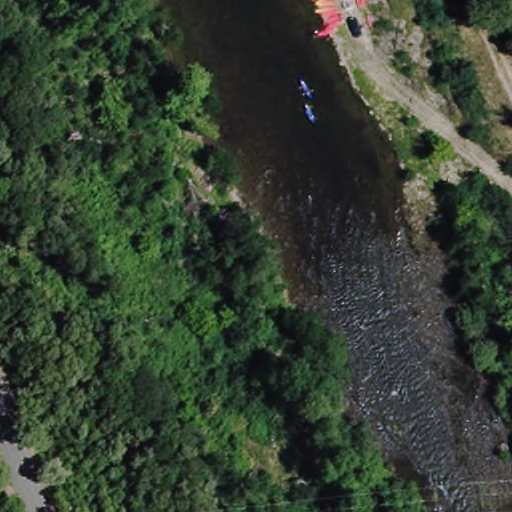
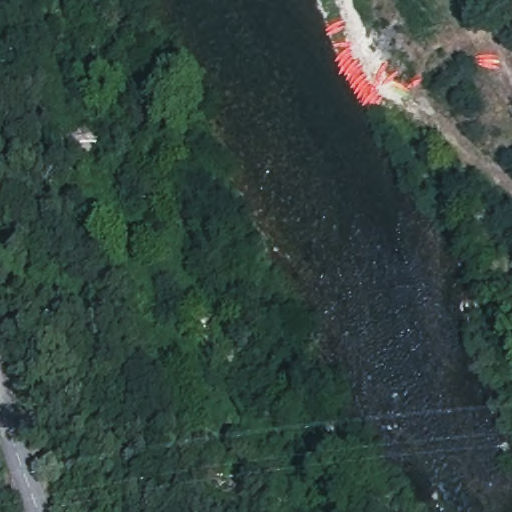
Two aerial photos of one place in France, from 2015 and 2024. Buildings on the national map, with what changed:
[]

